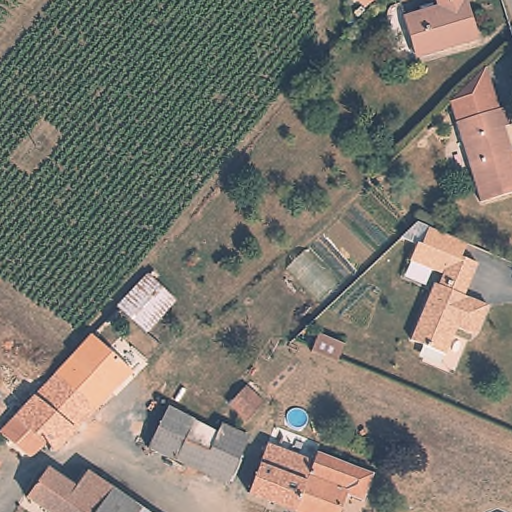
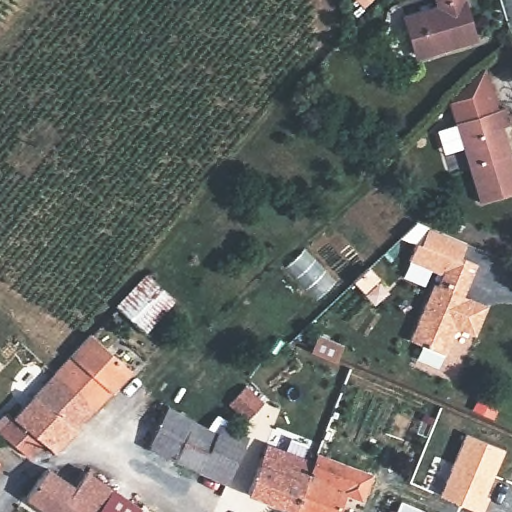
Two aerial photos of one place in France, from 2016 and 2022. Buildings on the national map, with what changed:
unchanged [(413,54),(402,16),(436,6),(435,0),(466,0),(477,41),(442,52),(415,60),(413,54)]
unchanged [(497,110),(455,123),(449,102),(483,69),(497,110)]
unchanged [(504,107),(510,125),(502,127),(512,158),(512,193),(480,203),(455,123),(497,110),(504,107)]
unchanged [(438,285),(442,275),(409,261),(416,245),(400,238),(417,222),(430,227),(434,229),(466,243),(460,257),(476,264),(466,290),(463,296),(487,305),(474,336),(456,328),(444,355),(410,340),(426,302),(433,283),(438,285)]
unchanged [(145,331),(118,307),(148,276),(173,300),(145,331)]
unchanged [(133,372),(111,394),(94,411),(53,372),(70,355),(92,335),(125,365),(133,372)]
unchanged [(335,363),(310,352),(317,335),(343,346),(335,363)]
unchanged [(14,445),(0,432),(0,428),(14,413),(53,372),(94,411),(76,430),(55,450),(52,450),(45,443),(31,457),(29,457),(14,445)]
unchanged [(245,386),(264,403),(247,422),(228,405),(245,386)]
unchanged [(175,460),(147,448),(168,407),(195,421),(175,460)]
unchanged [(217,433),(200,471),(175,460),(195,421),(207,427),(217,433)]
unchanged [(226,483),(200,471),(217,433),(221,425),(247,437),(226,483)]
new [(502,450),(484,495),(488,496),(482,512),(480,512),(439,495),(464,434),(502,450)]
unchanged [(344,488),(335,512),(308,512),(295,507),(249,489),(248,488),(267,440),(313,457),(316,449),(371,470),(361,495),(344,488)]
unchanged [(48,512),(26,497),(45,471),(49,469),(76,488),(61,512),(48,512)]
unchanged [(61,512),(76,488),(87,472),(112,490),(99,512),(61,512)]
unchanged [(141,508),(147,512),(99,512),(112,490),(141,508)]

